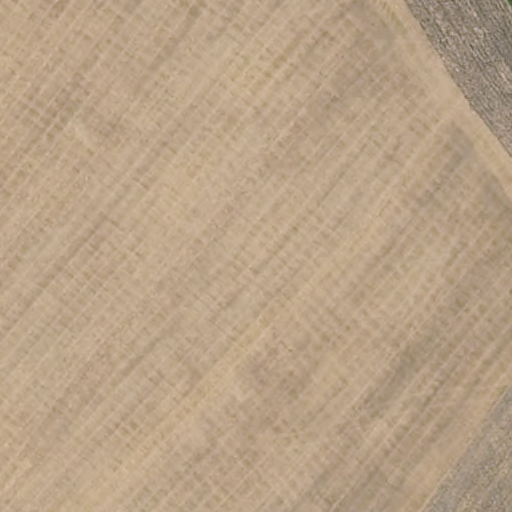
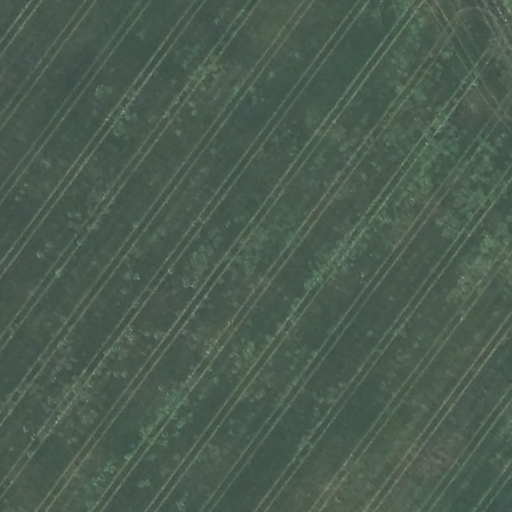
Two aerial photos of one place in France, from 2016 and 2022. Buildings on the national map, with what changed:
[]

